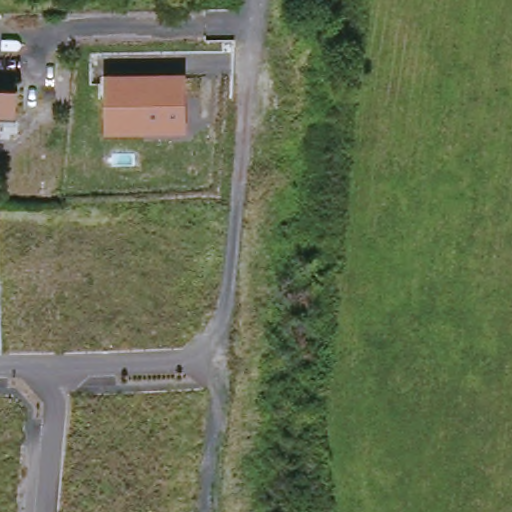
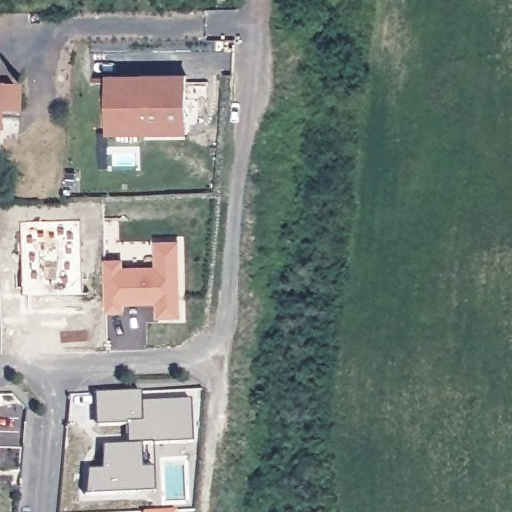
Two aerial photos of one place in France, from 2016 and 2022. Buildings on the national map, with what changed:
unchanged [(185,72),(186,133),(105,134),(105,73),(185,72)]
unchanged [(21,122),(3,121),(2,134),(0,134),(0,91),(22,91),(21,122)]
new [(103,263),(120,262),(120,270),(156,269),(156,244),(177,244),(180,317),(158,317),(158,303),(122,304),(122,312),(105,312),(103,263)]
new [(130,492),(90,494),(89,468),(105,468),(103,444),(130,443),(130,433),(126,433),(126,423),(98,424),(97,391),(140,389),(140,399),(195,397),(196,441),(153,441),(155,466),(155,489),(130,492)]

